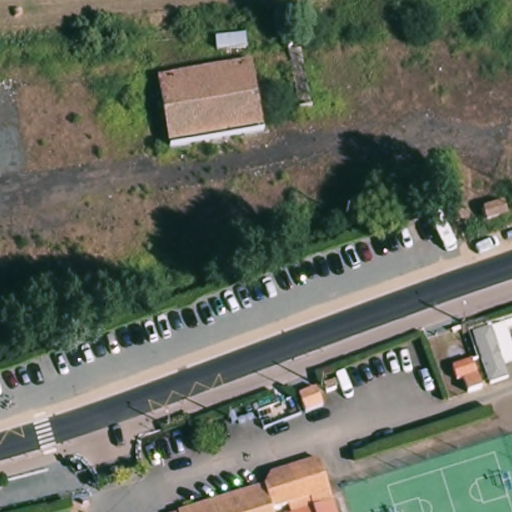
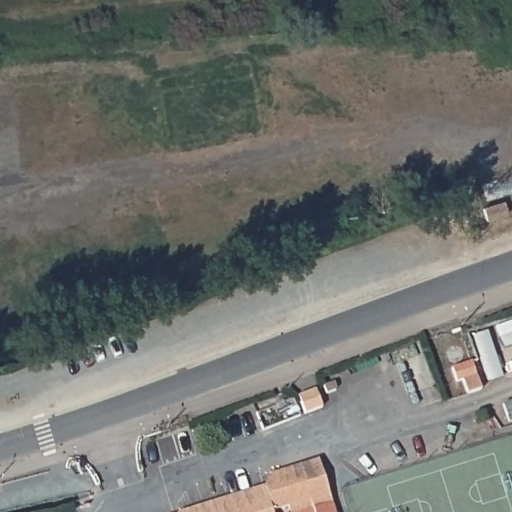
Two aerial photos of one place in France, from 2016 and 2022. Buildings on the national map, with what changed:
demolished [(253,55),(265,127),(169,145),(156,71),(253,55)]
unchanged [(512,231),(503,235),(499,222),(512,218),(512,231)]
unchanged [(474,393),(460,395),(458,378),(452,379),(451,367),(470,364),(471,377),(473,377),(474,393)]
unchanged [(334,392),(340,412),(315,420),(309,401),(309,400),(334,392)]
unchanged [(262,488),(269,476),(317,462),(331,512),(183,512),(262,488)]

